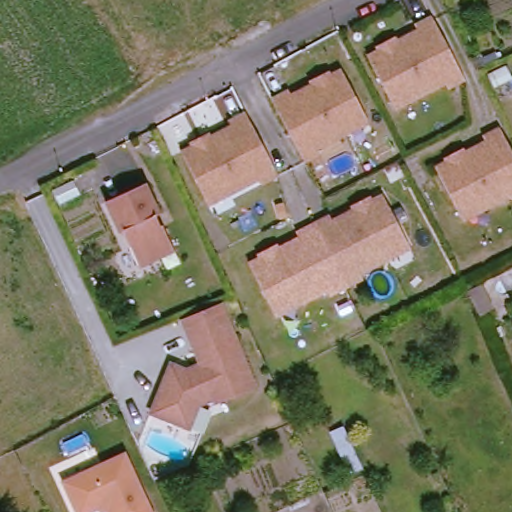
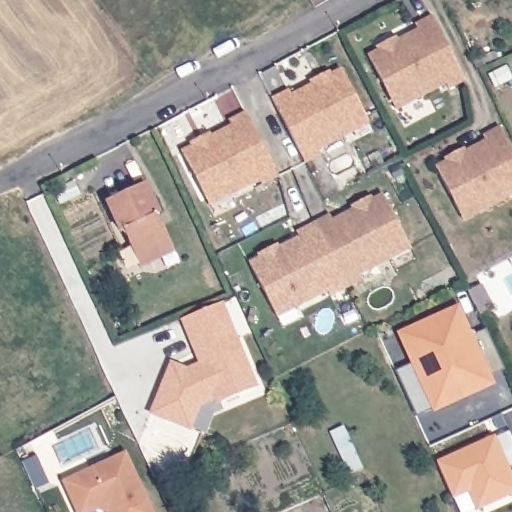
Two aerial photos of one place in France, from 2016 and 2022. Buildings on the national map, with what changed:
unchanged [(398,108),(373,62),(383,57),(380,51),(421,31),(437,22),(469,85),(453,94),(451,88),(422,103),(401,114),(398,108)]
unchanged [(347,134),(319,149),(321,154),(304,163),(272,99),(289,91),(329,70),(331,76),(341,70),(365,117),(369,123),(347,134)]
unchanged [(206,199),(181,153),(191,147),(188,142),(229,122),(245,113),(278,177),(261,185),(259,180),(230,194),(208,205),(206,199)]
unchanged [(441,168),(451,163),(448,158),(489,137),(504,128),(512,143),(512,198),(489,209),(468,220),(465,214),(441,168)]
unchanged [(163,220),(159,221),(164,232),(167,231),(174,246),(168,260),(144,272),(128,237),(125,237),(111,207),(149,189),(163,220)]
unchanged [(393,264),(364,279),(367,284),(351,292),(318,229),(334,221),(375,200),(378,205),(388,200),(412,247),(414,253),(393,264)]
unchanged [(279,315),(254,269),(264,264),(261,259),(301,238),(318,229),(351,292),(334,301),(331,296),(304,310),(282,322),(279,315)]
unchanged [(479,287),(491,309),(479,315),(469,295),(468,293),(479,287)]
unchanged [(226,403),(223,398),(205,405),(194,429),(156,413),(176,365),(196,372),(210,367),(205,354),(200,352),(187,319),(222,305),(237,341),(241,339),(261,389),(226,403)]
new [(399,334),(457,307),(489,376),(457,391),(459,400),(436,409),(399,334)]
new [(512,439),(512,468),(507,470),(512,481),(512,495),(477,510),(468,492),(451,499),(436,465),(509,432),(512,439)]
unchanged [(124,455),(150,512),(104,512),(96,509),(90,512),(76,512),(63,482),(124,455)]

